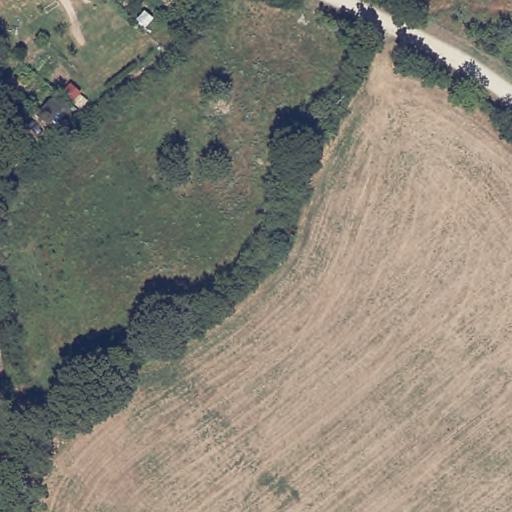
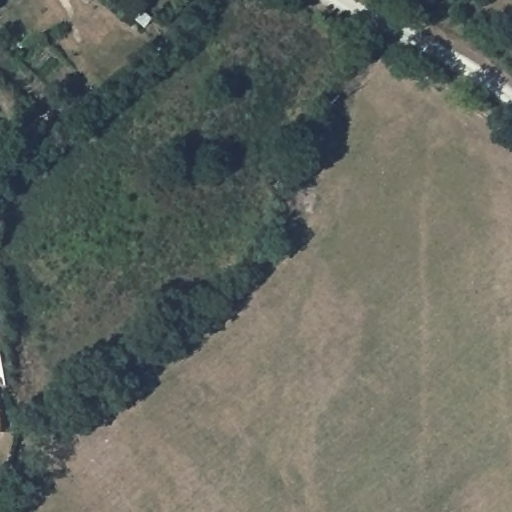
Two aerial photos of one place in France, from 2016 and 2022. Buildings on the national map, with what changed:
[]

